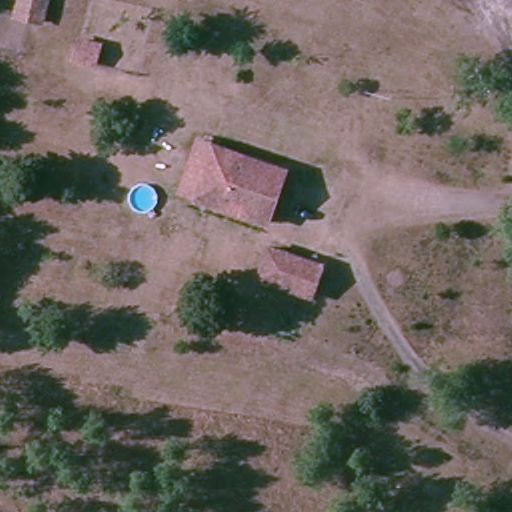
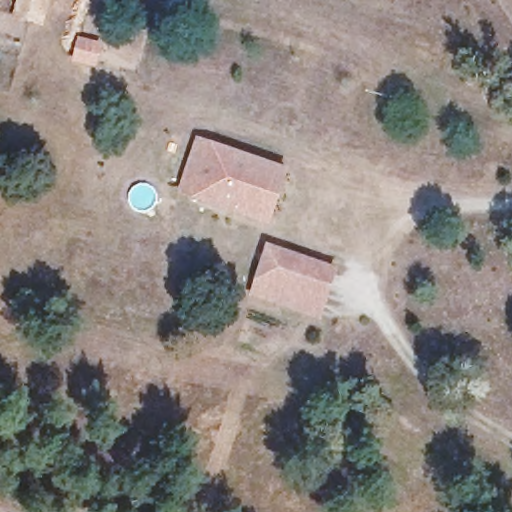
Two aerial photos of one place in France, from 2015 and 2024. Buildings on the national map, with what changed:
unchanged [(17,8),(20,0),(53,0),(46,20),(17,8)]
unchanged [(104,44),(98,64),(75,54),(79,37),(104,44)]
unchanged [(273,215),(201,192),(189,187),(202,142),(215,146),(286,171),(273,215)]
unchanged [(303,292),(261,276),(270,247),(315,263),(303,292)]

